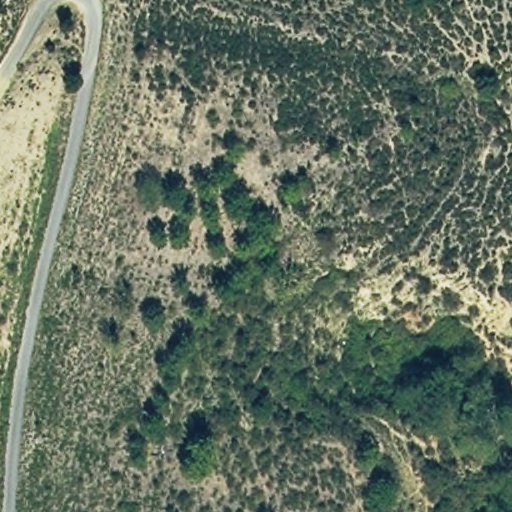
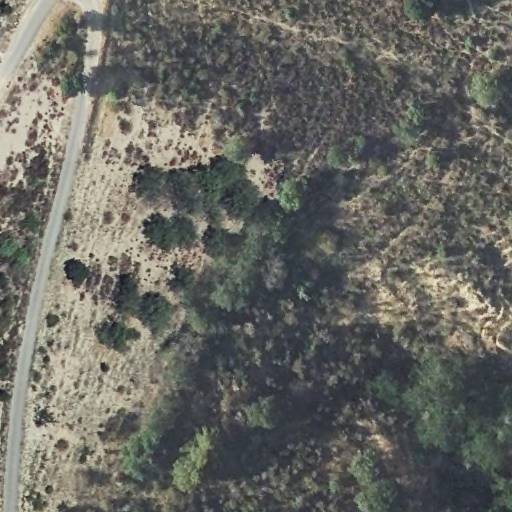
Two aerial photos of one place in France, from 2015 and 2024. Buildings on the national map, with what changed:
unchanged [(167,459),(151,452),(158,440),(172,447),(167,459)]

